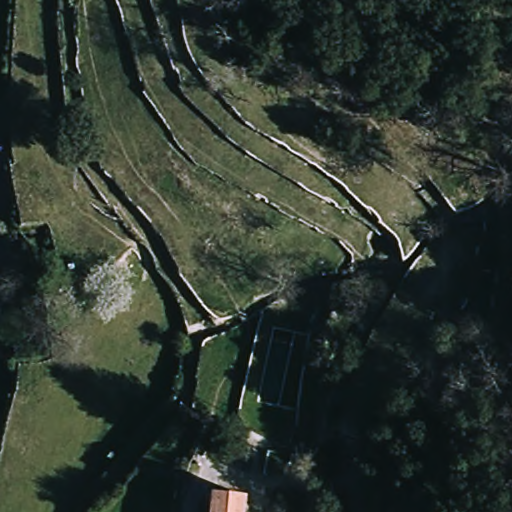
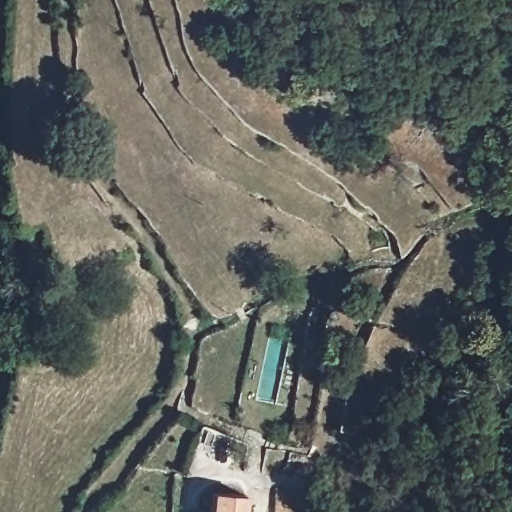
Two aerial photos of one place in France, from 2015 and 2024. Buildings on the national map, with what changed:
unchanged [(213,488),(240,489),(245,489),(244,509),(244,511),(244,512),(212,512),(212,504),(213,488)]

